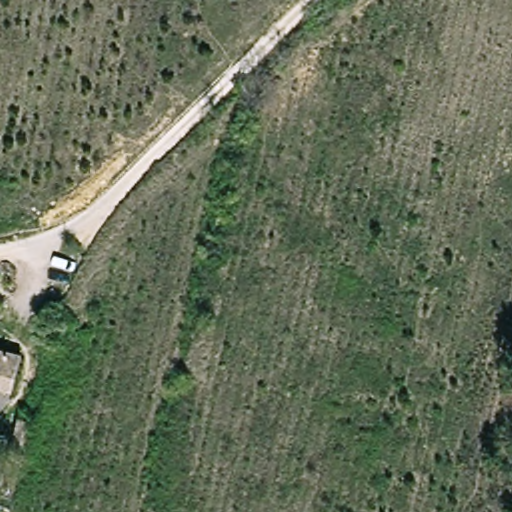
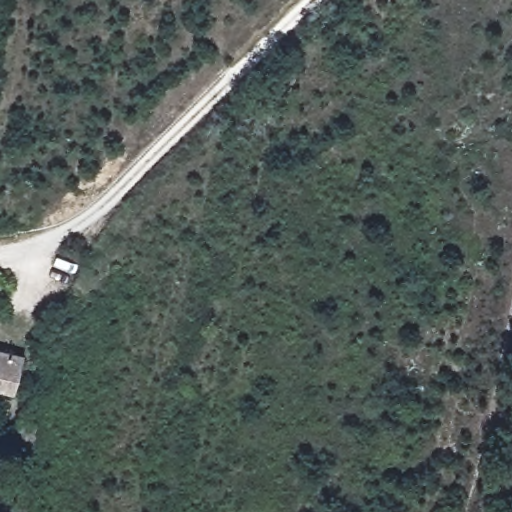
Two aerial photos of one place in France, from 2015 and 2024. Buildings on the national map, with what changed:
unchanged [(18,389),(0,385),(0,349),(27,355),(18,389)]
unchanged [(29,480),(11,475),(20,433),(38,436),(29,480)]

